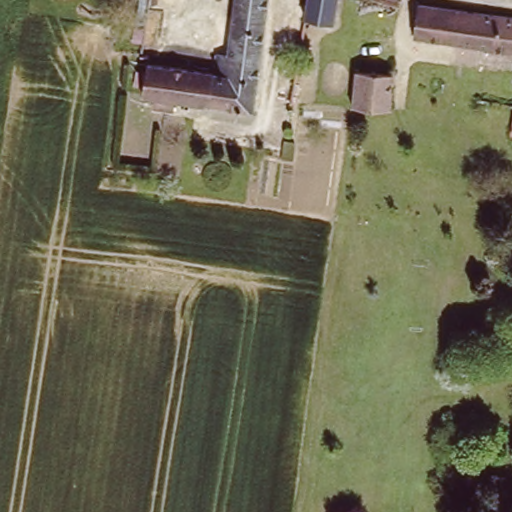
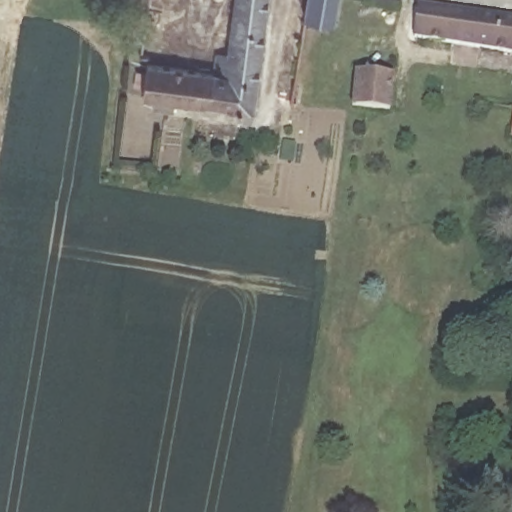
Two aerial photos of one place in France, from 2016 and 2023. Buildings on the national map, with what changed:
unchanged [(258,111),(177,100),(176,107),(155,105),(156,97),(147,96),(151,65),(201,72),(203,52),(220,54),(227,0),(271,0),(258,111)]
unchanged [(314,0),(340,0),(335,25),(311,20),(314,0)]
unchanged [(412,39),(417,5),(512,20),(512,54),(412,39)]
unchanged [(356,71),(390,75),(385,112),(352,108),(356,71)]

